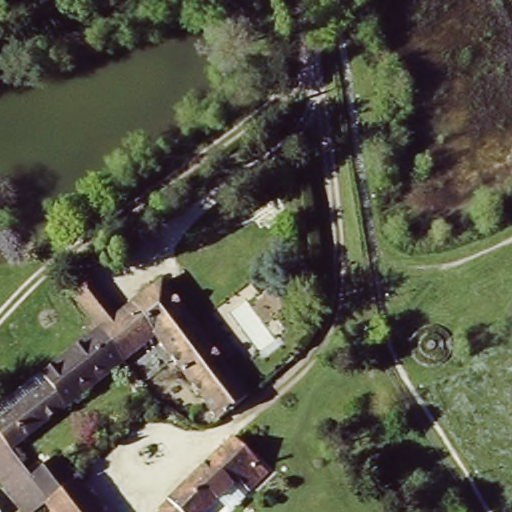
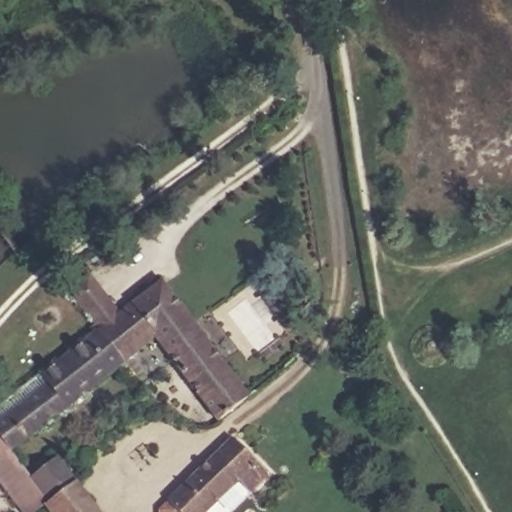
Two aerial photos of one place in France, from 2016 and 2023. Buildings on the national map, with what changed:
unchanged [(67,287),(87,270),(123,316),(100,335),(67,287)]
unchanged [(162,285),(212,352),(182,375),(155,340),(157,340),(133,309),(162,285)]
unchanged [(133,309),(157,340),(155,340),(140,353),(123,366),(100,335),(133,309)]
unchanged [(123,366),(10,454),(50,506),(42,512),(21,512),(0,485),(0,412),(100,335),(123,366)]
unchanged [(212,352),(250,401),(219,425),(182,375),(212,352)]
unchanged [(155,510),(165,500),(164,500),(229,437),(264,473),(245,491),(235,480),(202,512),(155,512),(155,510)]
unchanged [(32,481),(57,462),(63,470),(75,486),(95,512),(48,512),(47,510),(51,506),(32,481)]

